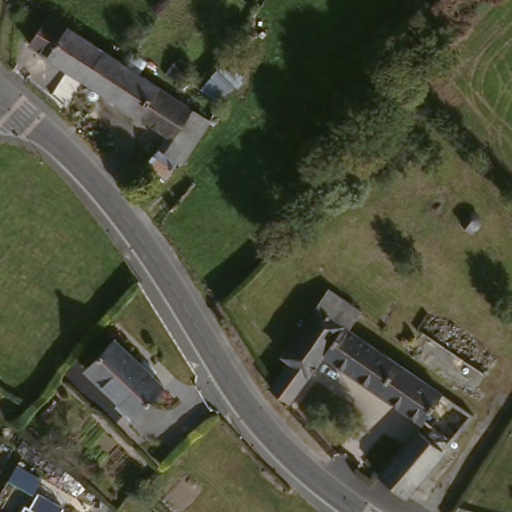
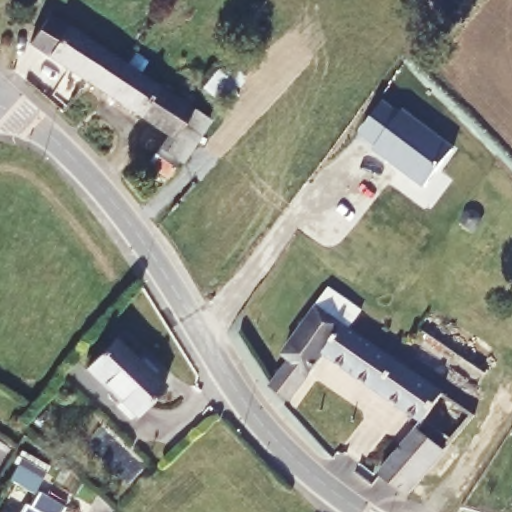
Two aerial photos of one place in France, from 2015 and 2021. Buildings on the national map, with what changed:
unchanged [(89,80),(35,45),(53,15),(109,50),(89,80)]
unchanged [(130,64),(214,122),(189,161),(184,160),(173,177),(154,164),(172,136),(89,80),(109,50),(130,64)]
new [(381,106),(398,119),(401,115),(452,153),(423,190),(373,152),(376,148),(359,135),(381,106)]
unchanged [(292,361),(283,353),(333,286),(364,309),(351,325),(408,365),(430,335),(484,373),(467,405),(476,414),(447,448),(410,495),(379,471),(423,420),(329,352),(313,374),(287,400),(276,383),(292,361)]
unchanged [(134,416),(85,368),(115,339),(163,385),(134,416)]
new [(18,463),(42,477),(34,493),(9,479),(18,463)]
unchanged [(39,512),(28,512),(30,508),(39,512)]

